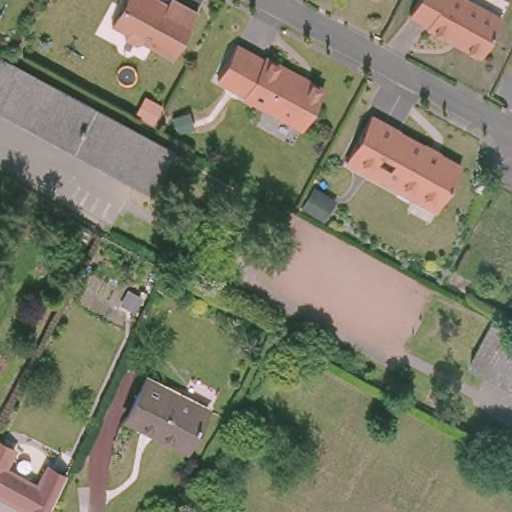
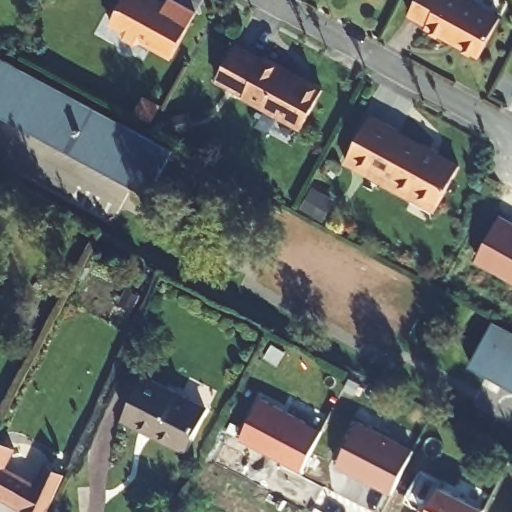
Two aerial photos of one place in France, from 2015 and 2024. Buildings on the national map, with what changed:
unchanged [(175,55),(143,38),(135,40),(120,32),(120,25),(110,20),(120,0),(185,0),(200,7),(175,55)]
unchanged [(469,0),(503,19),(482,56),(429,26),(430,24),(412,14),(419,0),(469,0)]
unchanged [(261,58),(263,54),(324,86),(303,124),(244,91),(245,87),(217,71),(233,42),(261,58)]
unchanged [(174,145),(151,187),(0,104),(0,51),(174,145)]
unchanged [(373,114),(402,129),(400,130),(425,144),(426,142),(442,151),(440,152),(462,164),(440,203),(417,190),(417,192),(411,194),(400,187),(397,181),(399,180),(386,174),(383,179),(348,160),(373,114)]
new [(512,221),(512,281),(475,261),(501,215),(512,221)]
unchanged [(491,317),(512,328),(512,382),(470,358),(491,317)]
unchanged [(191,448),(147,425),(144,430),(125,420),(149,376),(211,409),(191,448)]
new [(262,397),(325,428),(303,469),(241,437),(262,397)]
new [(337,466),(360,420),(416,448),(392,495),(337,466)]
unchanged [(17,453),(7,472),(39,489),(49,470),(65,477),(55,498),(48,512),(27,512),(27,511),(0,496),(0,444),(17,453)]
new [(442,485),(487,508),(485,512),(428,512),(442,485)]

